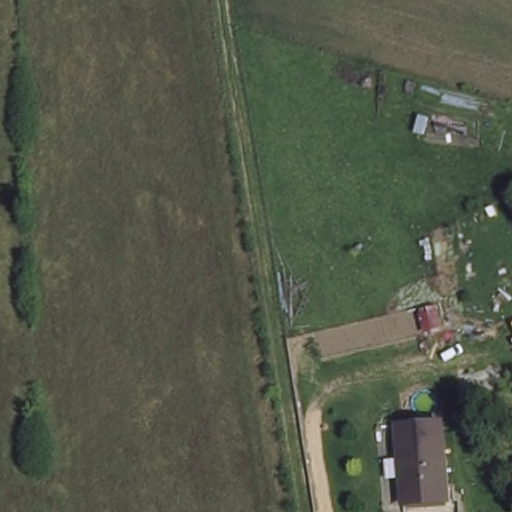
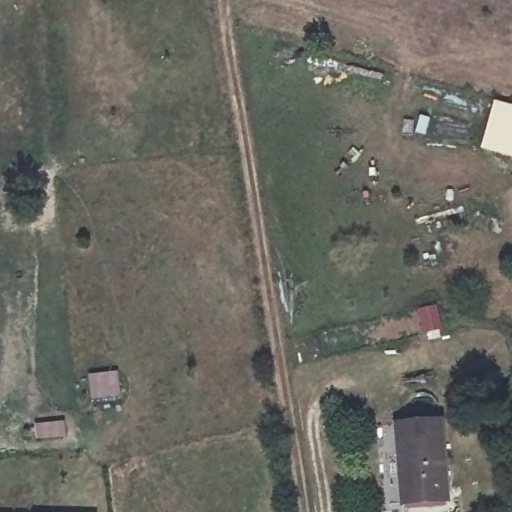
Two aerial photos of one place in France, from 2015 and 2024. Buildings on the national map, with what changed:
new [(495,100),(512,105),(512,157),(482,149),(495,100)]
unchanged [(401,503),(395,423),(439,420),(445,500),(401,503)]

